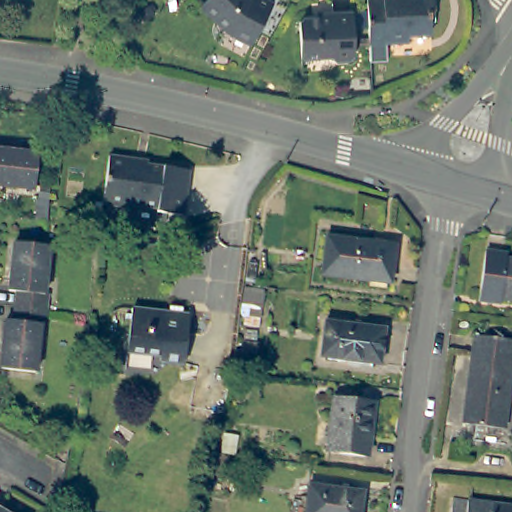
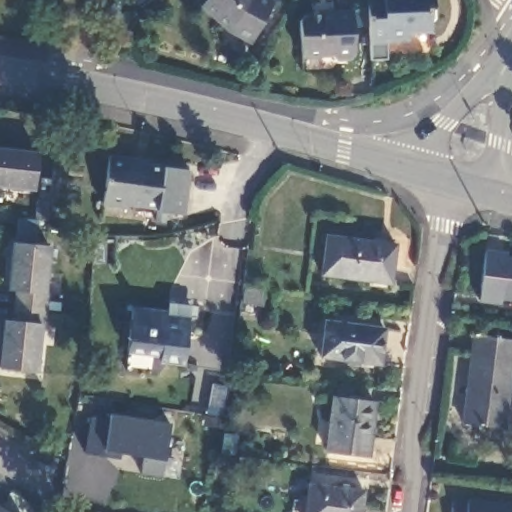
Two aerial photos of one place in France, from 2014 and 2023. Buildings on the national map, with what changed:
unchanged [(274,0),(251,41),(232,31),(226,31),(199,5),(203,0),(273,0),(274,0)]
unchanged [(434,8),(430,13),(432,34),(408,36),(408,43),(387,44),(387,47),(368,48),(368,34),(367,3),(366,0),(434,0),(434,8)]
unchanged [(349,58),(345,62),(331,63),(326,59),(296,60),(294,24),(299,18),(312,18),(327,17),(327,14),(347,13),(349,58)]
unchanged [(36,154),(32,189),(0,185),(0,150),(36,154)]
unchanged [(156,211),(156,208),(126,203),(125,207),(99,203),(105,153),(133,157),(132,161),(187,170),(182,210),(182,214),(170,213),(156,211)]
unchanged [(393,244),(388,283),(321,274),(326,235),(393,244)]
unchanged [(17,305),(20,290),(12,289),(17,242),(52,246),(47,292),(50,293),(49,309),(17,305)]
unchanged [(507,262),(512,263),(512,303),(503,301),(502,308),(481,305),(487,255),(507,257),(507,262)]
unchanged [(261,288),(260,304),(240,301),(242,285),(261,288)]
unchanged [(182,364),(159,361),(160,355),(127,351),(131,308),(166,312),(167,304),(181,305),(180,314),(188,314),(182,364)]
unchanged [(49,309),(47,324),(43,325),(39,371),(3,367),(9,320),(16,321),(17,305),(49,309)]
unchanged [(382,327),(377,363),(319,356),(323,321),(382,327)]
unchanged [(472,334),(512,340),(512,358),(506,402),(463,397),(472,334)]
unchanged [(255,342),(254,351),(240,350),(242,340),(255,342)]
unchanged [(373,402),(366,455),(325,450),(332,397),(373,402)]
unchanged [(506,402),(502,427),(461,422),(463,397),(506,402)]
new [(171,423),(165,459),(162,476),(141,473),(143,456),(122,452),(120,458),(85,452),(92,416),(110,419),(111,414),(171,423)]
unchanged [(227,453),(222,479),(212,477),(216,451),(227,453)]
unchanged [(358,512),(304,512),(306,497),(296,495),(297,489),(307,490),(307,484),(362,491),(358,512)]
unchanged [(512,512),(454,512),(456,502),(512,510),(512,512)]

